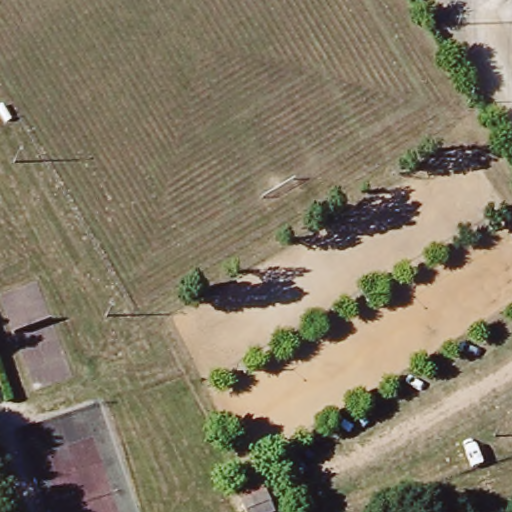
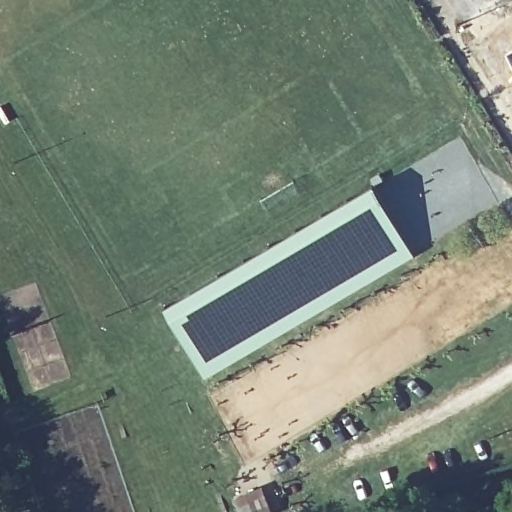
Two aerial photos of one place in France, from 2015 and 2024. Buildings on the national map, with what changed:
new [(368,188),(409,258),(206,377),(165,306),(368,188)]
unchanged [(249,512),(245,500),(241,491),(262,483),(266,493),(272,511),(268,512),(249,512)]

